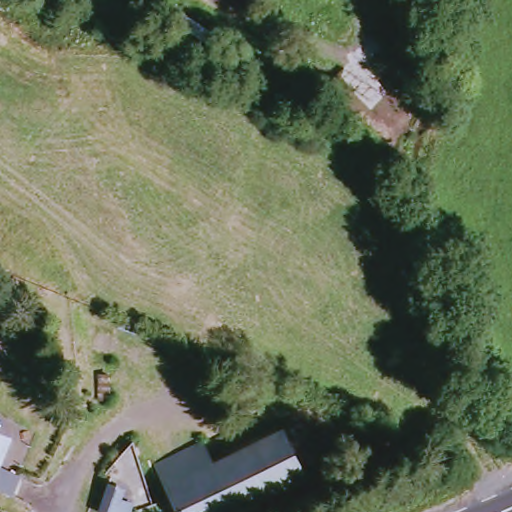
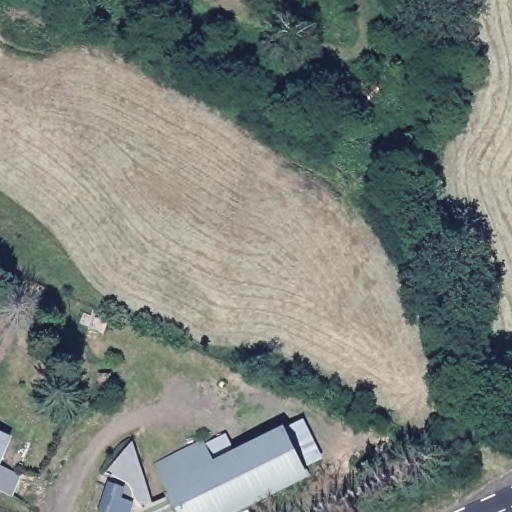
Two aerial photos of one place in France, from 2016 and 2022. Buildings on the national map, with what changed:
unchanged [(105,368),(105,396),(97,395),(97,368),(105,368)]
unchanged [(214,464),(285,432),(307,480),(241,512),(180,512),(159,466),(204,447),(214,464)]
unchanged [(12,448),(0,474),(0,442),(12,448)]
unchanged [(22,486),(14,501),(0,495),(0,475),(22,486)]
unchanged [(92,511),(100,484),(117,490),(115,495),(125,499),(121,512),(95,512),(92,511)]

